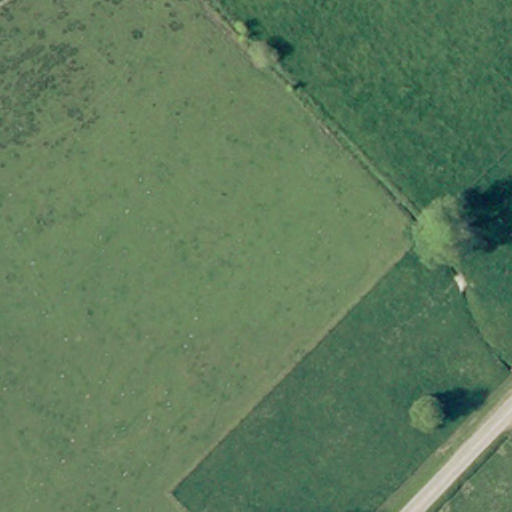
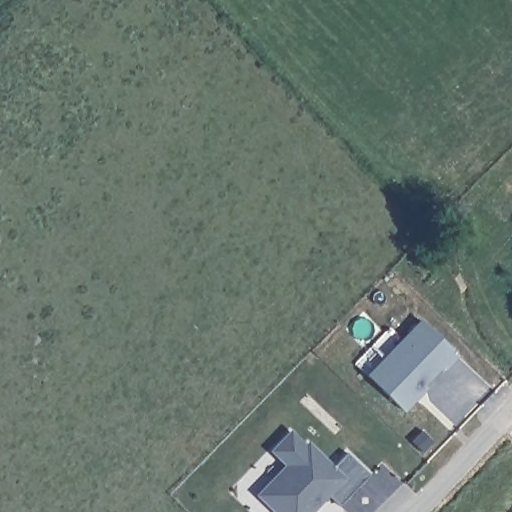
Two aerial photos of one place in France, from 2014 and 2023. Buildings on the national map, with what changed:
new [(442,366),(424,385),(427,388),(404,409),(366,372),(419,317),(458,355),(445,369),(442,366)]
new [(304,442),(306,440),(333,466),(346,452),(370,475),(339,506),(329,496),(313,512),(274,512),(254,494),(283,465),(268,450),(289,428),(304,442)]

